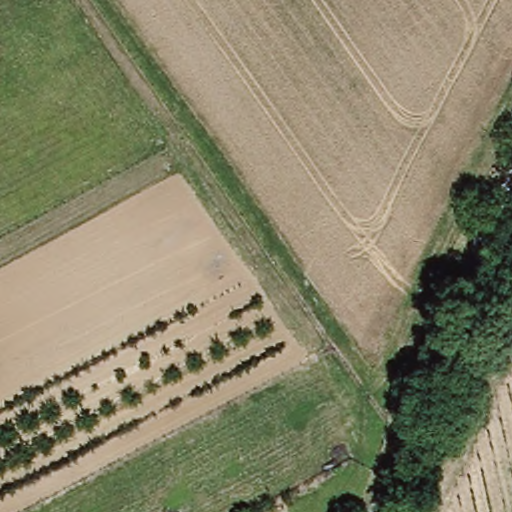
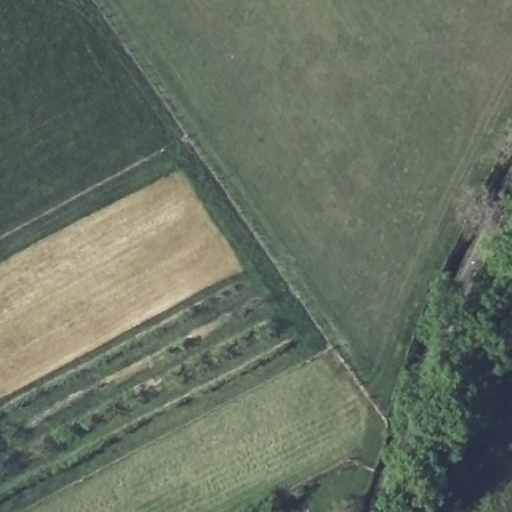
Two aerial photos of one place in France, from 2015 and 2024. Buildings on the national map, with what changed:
[]

